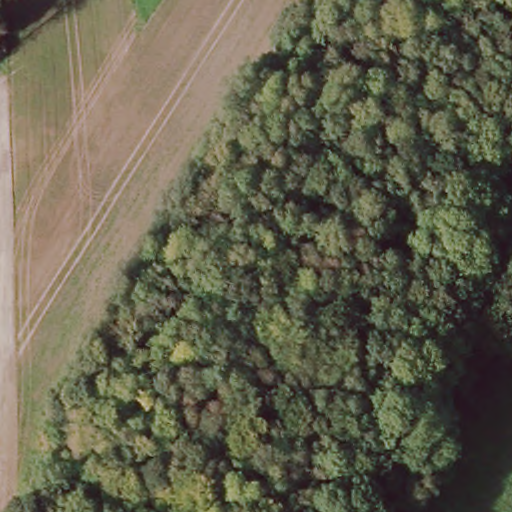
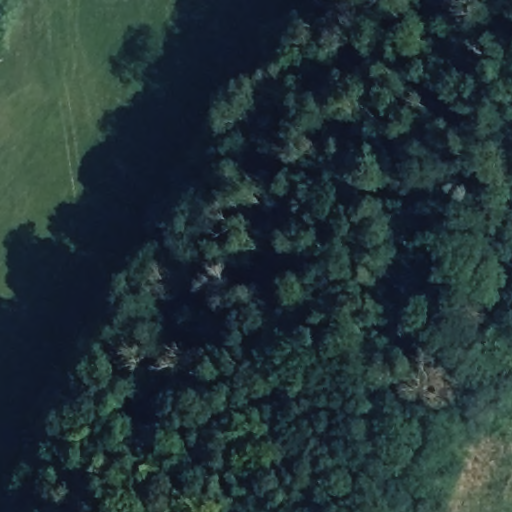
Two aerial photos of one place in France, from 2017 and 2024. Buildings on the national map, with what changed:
[]

